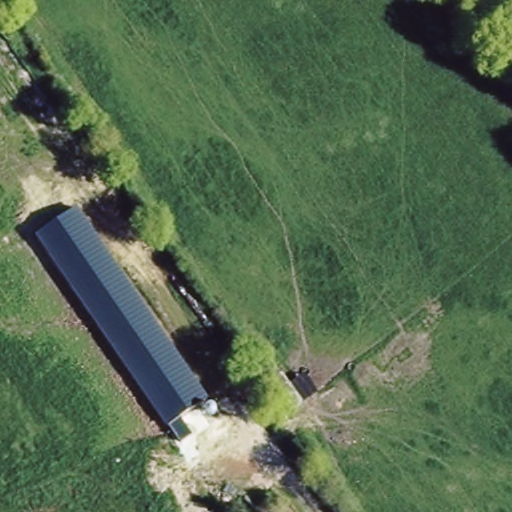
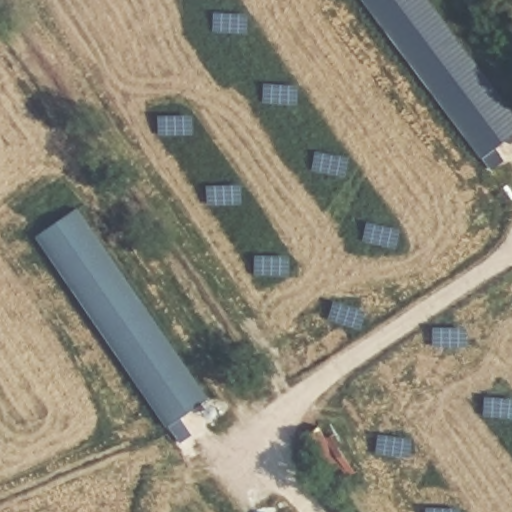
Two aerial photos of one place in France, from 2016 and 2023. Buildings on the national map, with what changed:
new [(503,161),(490,170),(363,0),(431,0),(512,108),(512,136),(495,149),(503,161)]
unchanged [(213,397),(170,428),(37,243),(80,212),(213,397)]

